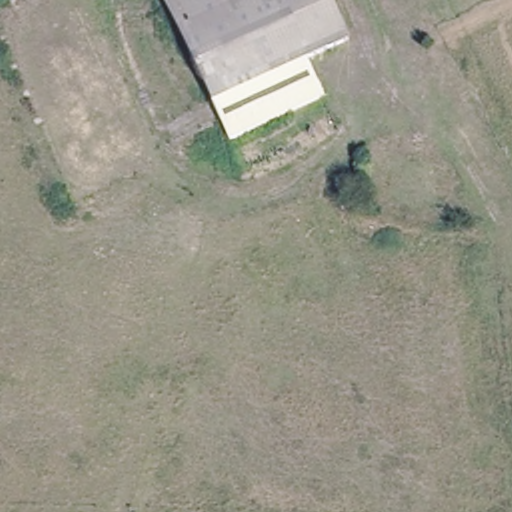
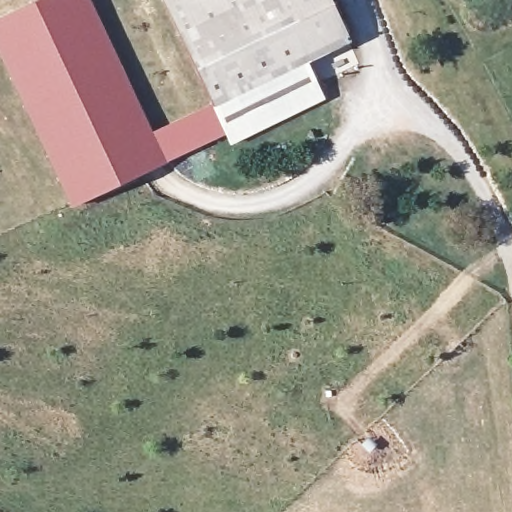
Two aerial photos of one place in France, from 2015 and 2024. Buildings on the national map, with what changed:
new [(307,62),(325,98),(230,145),(224,135),(69,210),(0,63),(0,18),(37,0),(90,0),(151,132),(212,104),(163,0),(330,0),(349,40),(307,62)]
demolished [(345,39),(303,57),(318,97),(218,135),(166,0),(331,0),(345,39)]

